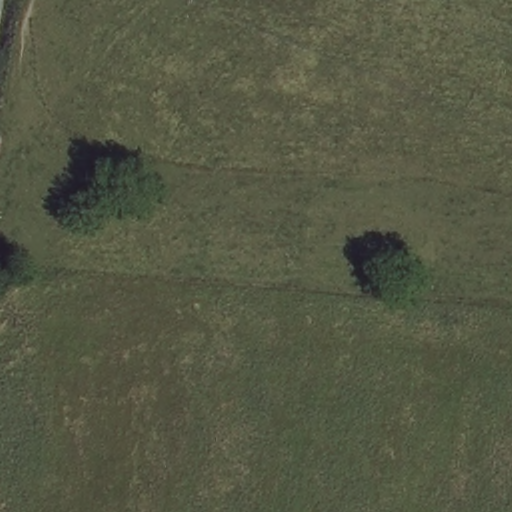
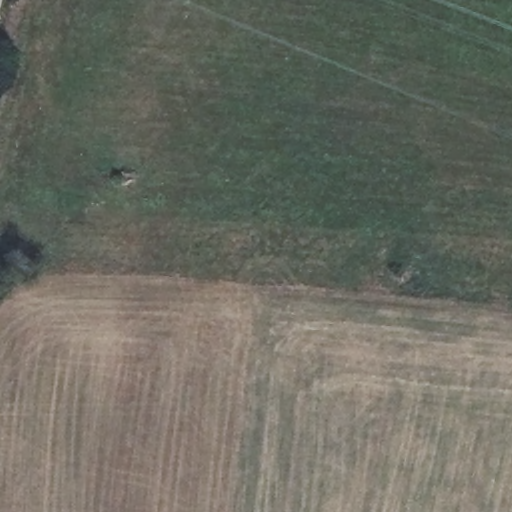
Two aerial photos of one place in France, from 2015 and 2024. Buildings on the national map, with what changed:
[]

